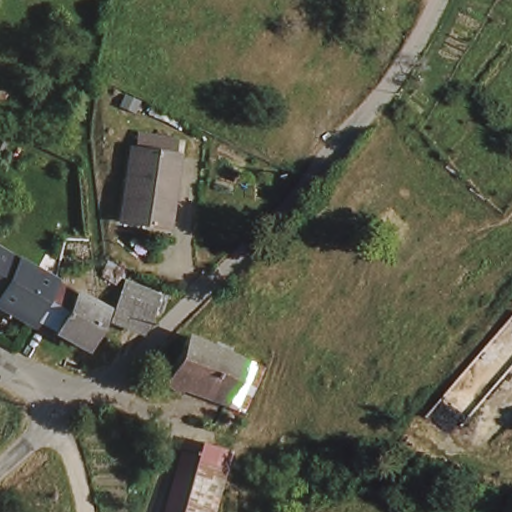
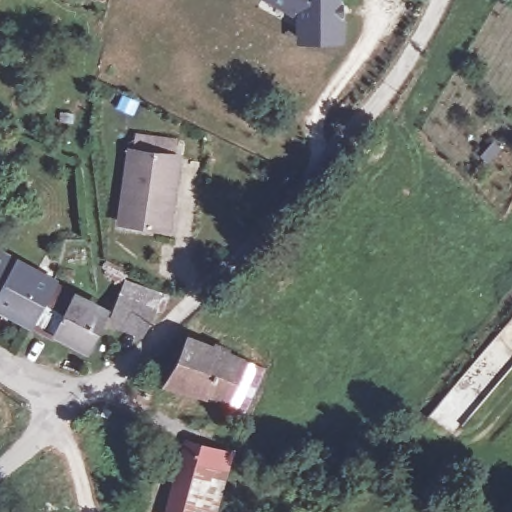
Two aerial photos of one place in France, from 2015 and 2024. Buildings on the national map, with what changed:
new [(344,43),(299,44),(296,17),(266,0),(344,0),(344,43)]
unchanged [(174,152),(168,227),(119,225),(125,150),(174,152)]
unchanged [(25,321),(0,306),(0,258),(45,282),(25,321)]
unchanged [(115,297),(123,279),(156,292),(148,311),(138,337),(107,327),(113,310),(112,306),(115,297)]
unchanged [(97,310),(77,351),(25,321),(45,282),(97,310)]
unchanged [(184,339),(251,366),(220,420),(161,393),(184,339)]
unchanged [(208,461),(193,512),(170,512),(180,473),(173,471),(183,442),(211,449),(208,461)]
unchanged [(211,512),(193,512),(208,461),(225,466),(211,512)]

